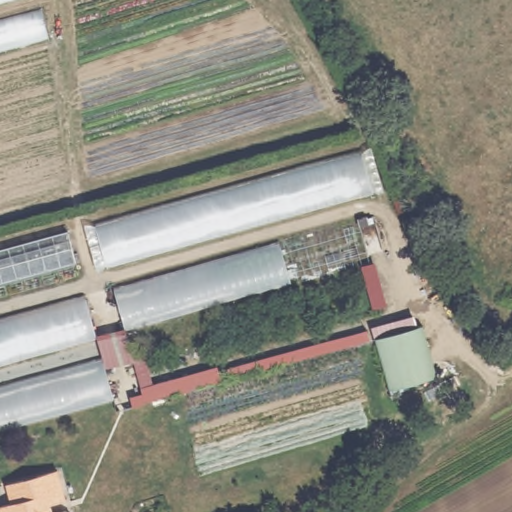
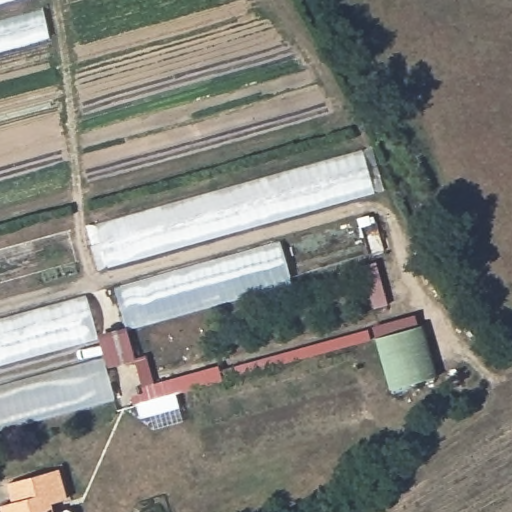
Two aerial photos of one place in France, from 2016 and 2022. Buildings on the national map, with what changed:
unchanged [(0,6),(0,0),(22,0),(0,6)]
unchanged [(50,41),(0,54),(0,21),(42,9),(50,41)]
unchanged [(365,150),(376,195),(111,274),(98,229),(365,150)]
unchanged [(351,216),(362,260),(120,331),(105,286),(351,216)]
unchanged [(69,238),(77,266),(0,288),(0,259),(69,238)]
unchanged [(77,296),(89,339),(0,366),(0,317),(77,296)]
unchanged [(428,327),(442,377),(395,391),(381,340),(428,327)]
unchanged [(376,342),(226,385),(224,376),(373,332),(376,342)]
unchanged [(95,357),(107,400),(0,430),(0,384),(95,357)]
unchanged [(150,407),(145,392),(222,371),(224,376),(226,385),(150,407)]
unchanged [(9,502),(4,480),(56,467),(64,496),(50,500),(53,511),(66,508),(71,511),(71,512),(0,512),(0,504),(9,502)]

